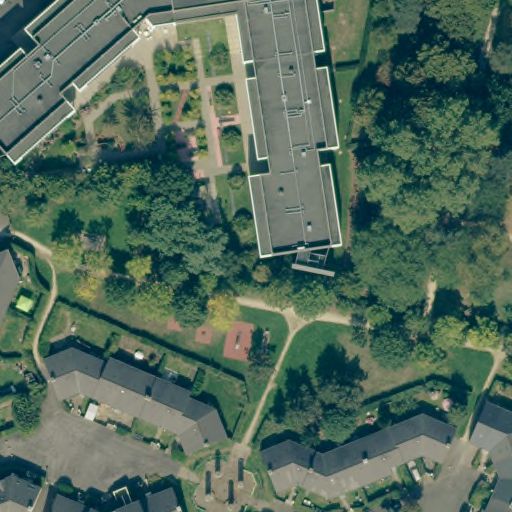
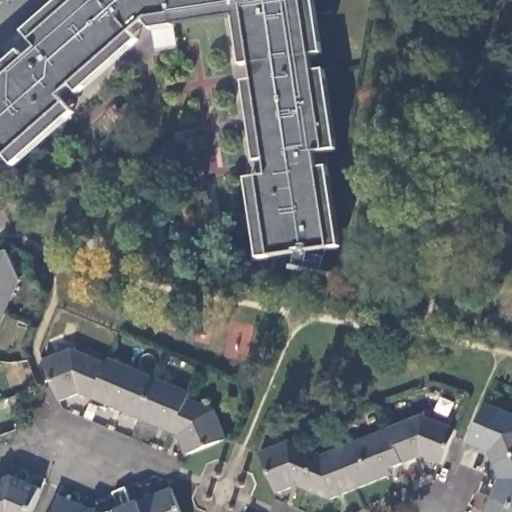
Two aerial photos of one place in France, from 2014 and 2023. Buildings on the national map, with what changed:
unchanged [(12,164),(7,158),(0,149),(0,72),(22,51),(29,59),(41,49),(29,34),(68,0),(315,0),(322,51),(313,52),(315,68),(324,67),(335,148),(316,151),(318,166),(322,201),(273,207),(268,174),(266,157),(255,159),(245,78),(255,77),(253,60),(242,62),(235,13),(177,21),(177,29),(153,32),(147,25),(135,35),(141,42),(81,95),(74,87),(62,97),(69,106),(76,115),(15,167),(12,164)]
unchanged [(327,165),(338,244),(258,256),(247,177),(268,174),(273,207),(322,201),(318,166),(327,165)]
unchanged [(2,252),(5,257),(14,281),(0,314),(0,253),(2,252)]
unchanged [(178,436),(79,394),(60,401),(45,365),(43,361),(72,349),(108,364),(110,359),(190,393),(188,398),(215,411),(226,439),(218,442),(186,456),(178,436)]
unchanged [(512,512),(482,512),(500,469),(489,442),(469,433),(486,394),(512,405),(512,512)]
unchanged [(423,452),(390,465),(392,471),(331,496),(297,482),(277,489),(273,480),(260,448),(290,437),(323,451),(423,411),(456,425),(442,460),(423,452)]
unchanged [(13,473),(41,485),(31,508),(29,512),(0,512),(0,478),(13,473)]
unchanged [(103,511),(172,483),(176,493),(184,512),(48,512),(57,491),(103,511)]

